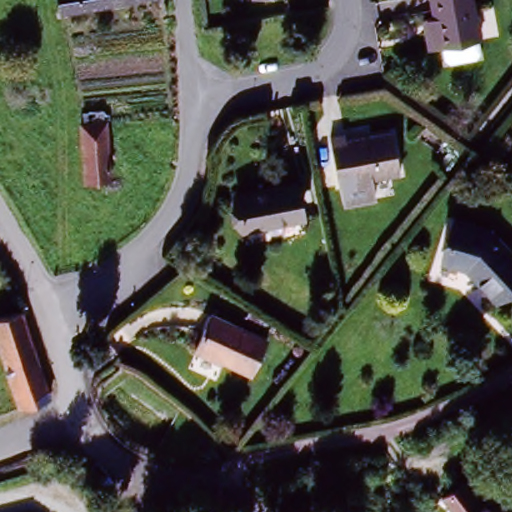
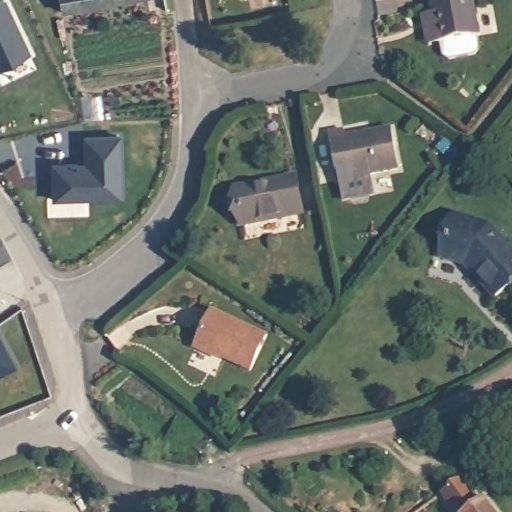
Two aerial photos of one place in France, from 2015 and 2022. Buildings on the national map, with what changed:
new [(0,64),(0,0),(5,0),(30,50),(0,64)]
unchanged [(60,0),(118,0),(62,10),(60,0)]
unchanged [(433,15),(431,0),(473,0),(480,37),(439,45),(438,44),(428,46),(422,18),(433,15)]
demolished [(107,119),(110,157),(118,157),(120,176),(85,180),(80,121),(107,119)]
unchanged [(344,132),(345,139),(390,130),(398,171),(337,183),(328,135),(344,132)]
new [(52,198),(51,163),(77,162),(77,165),(84,165),(83,136),(118,135),(120,196),(52,198)]
unchanged [(295,179),(302,216),(244,227),(237,190),(295,179)]
unchanged [(455,217),(491,226),(512,249),(512,282),(496,297),(466,265),(444,258),(455,217)]
unchanged [(0,318),(24,312),(53,396),(16,408),(0,356),(0,318)]
unchanged [(210,312),(265,338),(248,373),(193,346),(210,312)]
unchanged [(438,496),(458,481),(476,504),(479,502),(487,512),(450,512),(438,496)]

